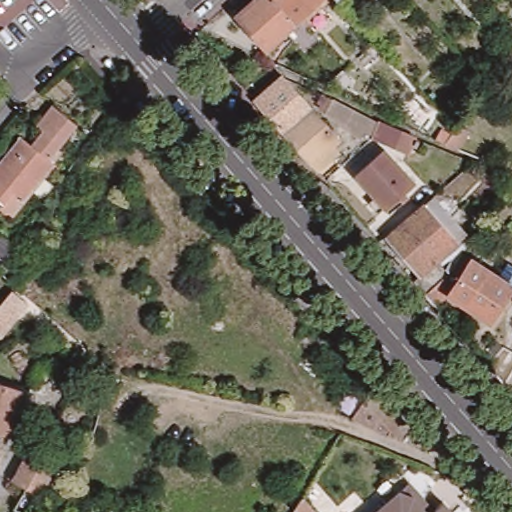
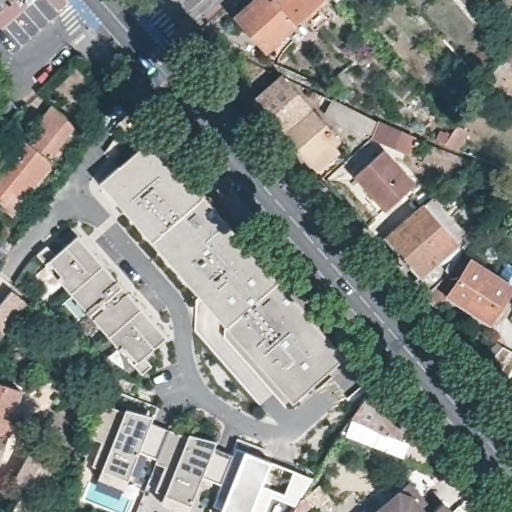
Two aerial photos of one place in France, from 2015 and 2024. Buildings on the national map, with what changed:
unchanged [(268,57),(235,21),(259,0),(269,0),(295,29),(297,32),(268,57)]
unchanged [(328,0),(295,29),(269,0),(328,0)]
unchanged [(328,0),(350,0),(337,11),(330,2),(328,0)]
unchanged [(512,37),(512,48),(506,42),(512,37)]
unchanged [(508,53),(512,48),(512,65),(504,60),(508,53)]
unchanged [(283,126),(254,93),(282,69),(311,102),(283,126)]
unchanged [(405,141),(376,128),(370,123),(362,131),(325,103),(333,92),(362,104),(382,114),(412,127),(405,141)]
unchanged [(58,156),(16,208),(6,199),(7,196),(0,190),(0,158),(24,127),(36,138),(48,123),(50,121),(42,113),(58,96),(81,116),(62,139),(51,151),(58,156)]
unchanged [(316,164),(310,156),(283,126),(311,102),(337,132),(333,135),(340,143),(316,164)]
unchanged [(460,140),(457,146),(445,141),(446,136),(435,132),(440,124),(450,129),(463,134),(460,140)]
new [(152,133),(342,351),(290,397),(100,179),(152,133)]
unchanged [(385,141),(416,177),(385,203),(354,167),(385,141)]
unchanged [(465,235),(424,292),(411,277),(418,271),(385,234),(432,193),(465,235)]
new [(46,242),(55,252),(77,232),(102,261),(70,290),(36,251),(46,242)]
unchanged [(471,258),(495,274),(506,259),(512,264),(512,286),(487,320),(450,293),(436,306),(424,292),(465,235),(477,241),(471,258)]
new [(102,261),(121,283),(89,311),(70,290),(102,261)]
new [(121,283),(140,305),(107,333),(89,311),(121,283)]
unchanged [(11,285),(26,295),(0,327),(0,300),(11,285)]
new [(140,305),(166,334),(143,354),(151,363),(141,372),(107,333),(140,305)]
unchanged [(502,346),(512,353),(512,399),(485,365),(502,346)]
unchanged [(24,388),(0,460),(0,381),(24,388)]
unchanged [(421,441),(417,443),(350,411),(370,381),(421,441)]
new [(166,492),(156,491),(166,467),(155,463),(156,460),(140,451),(125,489),(98,478),(103,467),(93,465),(101,441),(88,436),(100,402),(127,409),(155,417),(154,421),(170,429),(190,434),(218,440),(216,447),(232,454),(220,482),(205,474),(190,512),(178,512),(161,504),(166,492)]
new [(298,493),(292,504),(271,497),(265,512),(219,512),(220,508),(212,506),(220,482),(232,454),(235,448),(244,450),(270,460),(312,477),(304,490),(301,487),(298,493)]
unchanged [(17,478),(31,453),(55,466),(40,491),(17,478)]
unchanged [(411,483),(435,510),(444,502),(452,512),(375,512),(400,491),(411,483)]
unchanged [(307,493),(302,498),(310,507),(304,512),(296,512),(291,506),(298,493),(301,487),(307,493)]

